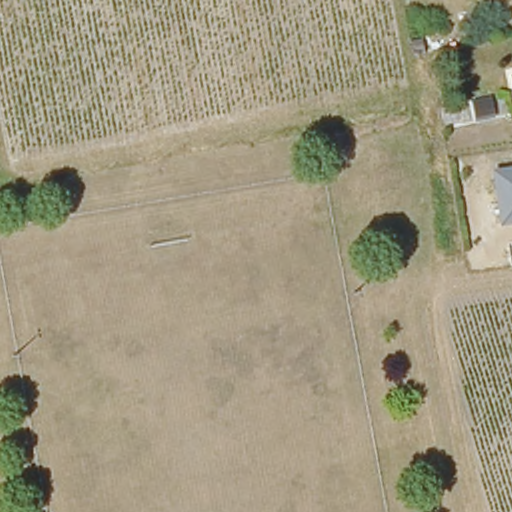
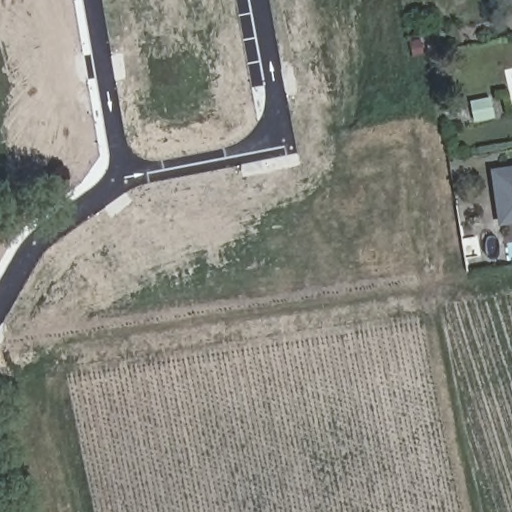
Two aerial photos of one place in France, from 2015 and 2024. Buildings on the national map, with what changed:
unchanged [(491,170),(512,166),(512,223),(500,225),(491,170)]

